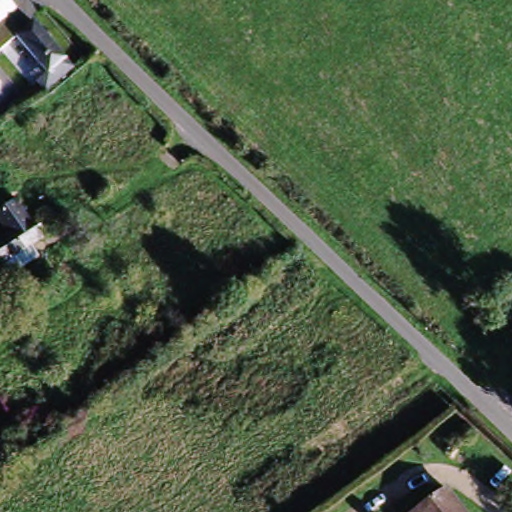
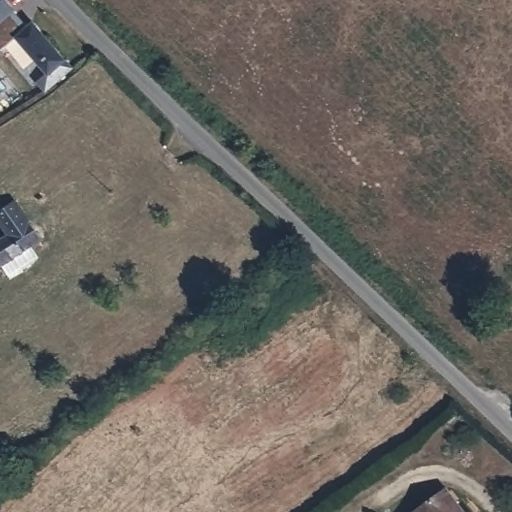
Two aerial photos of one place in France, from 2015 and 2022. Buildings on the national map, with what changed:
unchanged [(18,14),(0,29),(0,0),(6,0),(18,14)]
unchanged [(13,31),(33,17),(68,64),(48,78),(40,84),(33,75),(42,70),(13,31)]
unchanged [(46,244),(0,273),(0,247),(35,226),(46,244)]
unchanged [(417,512),(451,487),(469,512),(417,512)]

